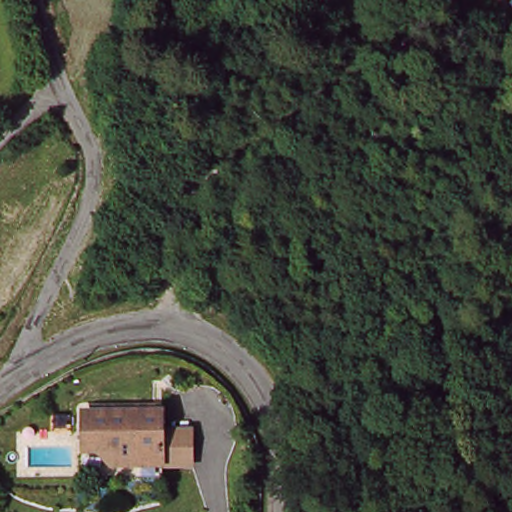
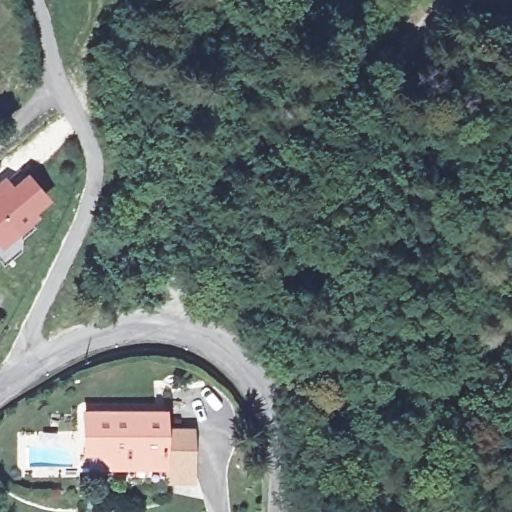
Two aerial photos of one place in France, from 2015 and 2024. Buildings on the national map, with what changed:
unchanged [(480,8),(483,0),(506,0),(496,17),(480,8)]
new [(5,174),(12,182),(26,170),(50,198),(36,211),(37,214),(0,245),(0,178),(5,174)]
unchanged [(163,467),(140,467),(137,452),(100,454),(97,434),(90,435),(89,414),(162,412),(163,467)]

